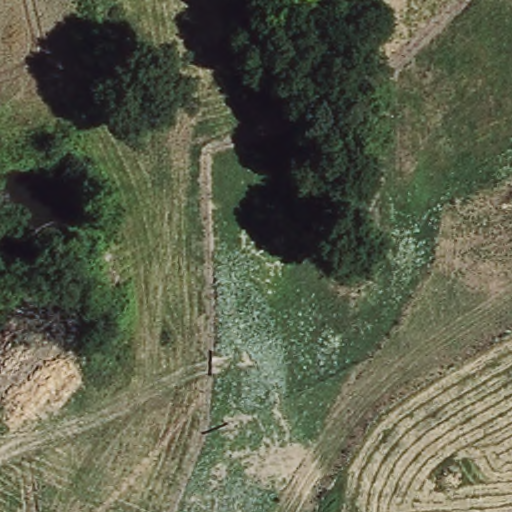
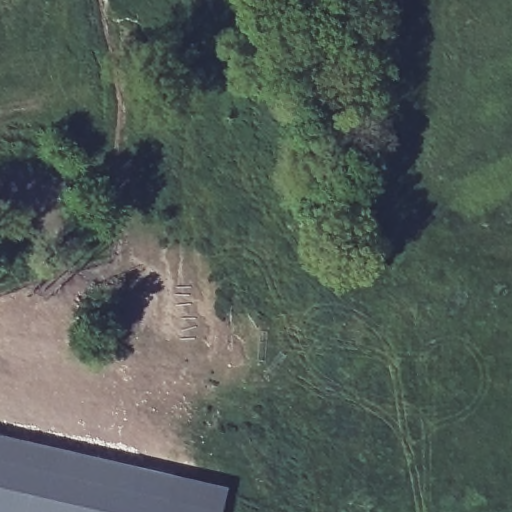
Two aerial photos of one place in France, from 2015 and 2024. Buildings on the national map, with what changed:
new [(219,512),(0,512),(0,436),(225,488),(219,512)]

